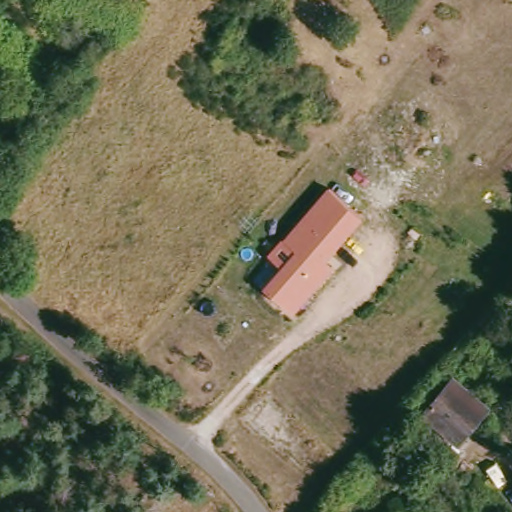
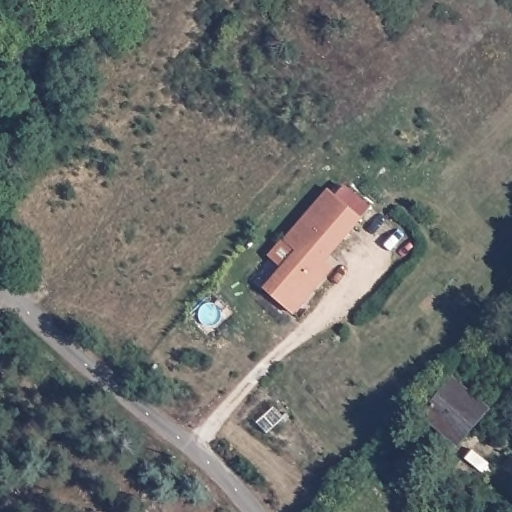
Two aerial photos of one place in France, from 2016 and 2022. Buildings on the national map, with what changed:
unchanged [(265,290),(297,254),(285,242),(330,192),(364,222),(329,263),(336,271),(293,316),(265,290)]
unchanged [(480,405),(470,416),(473,420),(453,442),(419,414),(448,380),(480,405)]

